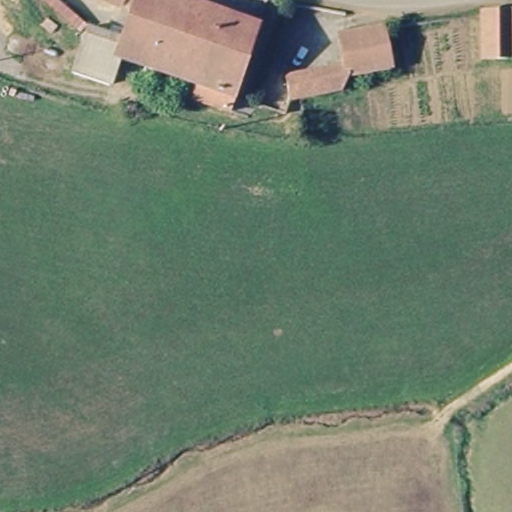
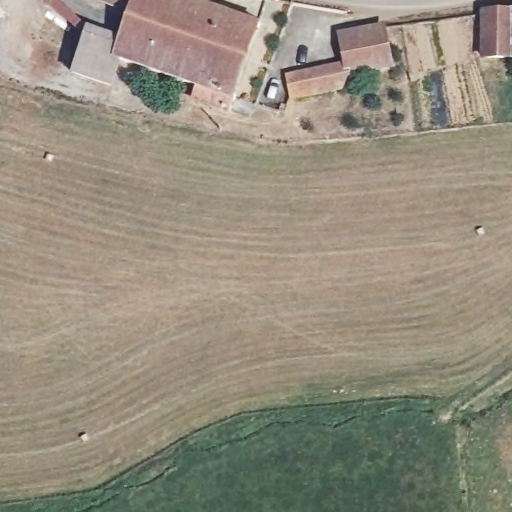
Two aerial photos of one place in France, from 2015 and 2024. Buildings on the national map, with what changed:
unchanged [(235,100),(229,113),(195,99),(199,88),(120,59),(122,47),(133,17),(101,0),(184,0),(260,29),(235,100)]
unchanged [(489,10),(512,11),(512,58),(489,57),(489,10)]
unchanged [(385,26),(392,64),(352,73),(353,79),(289,92),(286,71),(347,59),(344,32),(385,26)]
unchanged [(108,85),(75,70),(91,33),(122,47),(120,59),(108,85)]

